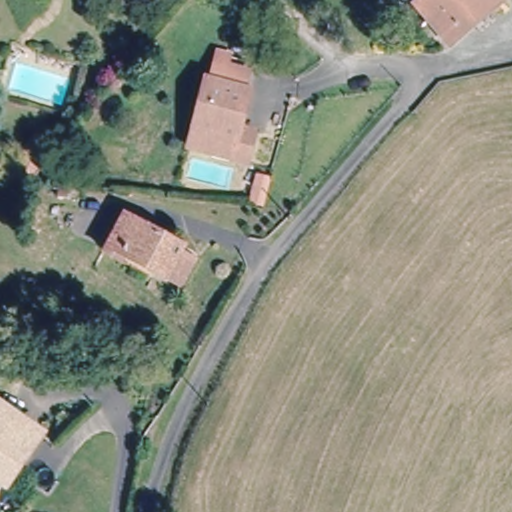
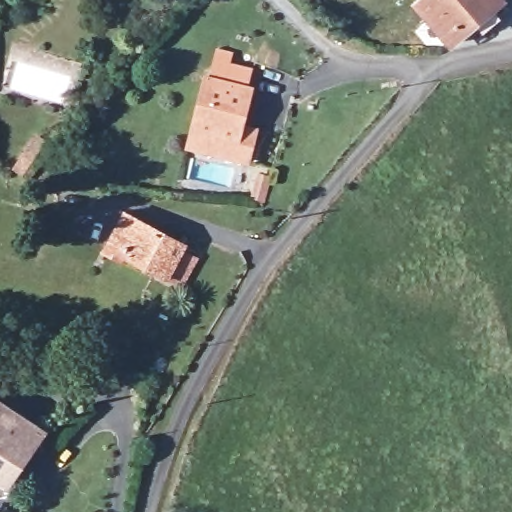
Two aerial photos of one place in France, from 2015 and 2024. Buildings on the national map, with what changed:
unchanged [(502,1),(452,43),(420,6),(427,0),(502,0),(502,1)]
unchanged [(502,1),(502,0),(503,0),(502,1)]
unchanged [(249,131),(241,161),(223,157),(187,146),(191,131),(206,81),(210,65),(243,74),(238,91),(244,92),(234,127),(249,131)]
unchanged [(51,147),(39,162),(27,153),(38,138),(51,147)]
unchanged [(167,280),(108,247),(125,216),(184,247),(167,280)]
unchanged [(43,437),(7,488),(0,483),(0,406),(43,437)]

